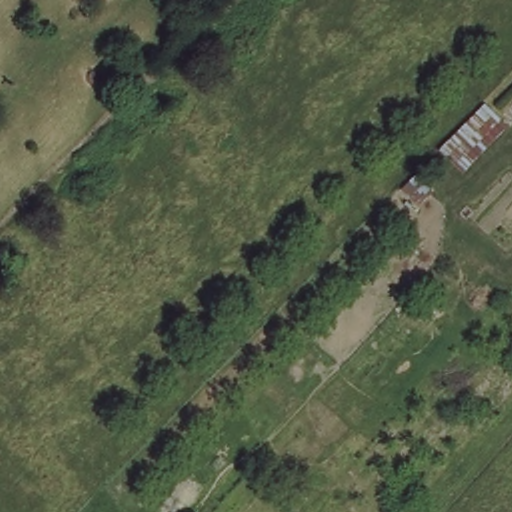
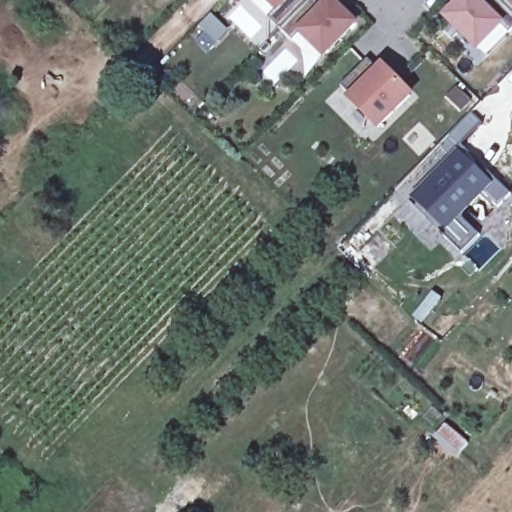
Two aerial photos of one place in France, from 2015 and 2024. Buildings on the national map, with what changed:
new [(331,1),(354,23),(316,63),(250,0),(314,0),(324,8),(331,1)]
new [(447,18),(464,0),(477,0),(478,1),(479,0),(512,0),(512,30),(487,56),(447,18)]
new [(231,33),(218,46),(201,29),(214,17),(231,33)]
new [(387,79),(392,75),(410,95),(379,127),(351,99),(354,97),(342,86),(368,60),(387,79)]
new [(410,204),(414,200),(410,197),(450,156),(440,146),(449,136),(470,114),(481,124),(460,145),(510,194),(498,206),(483,193),(460,218),(479,236),(460,254),(410,204)]

